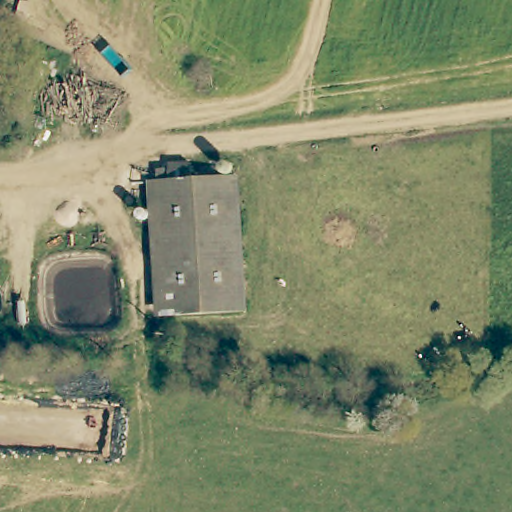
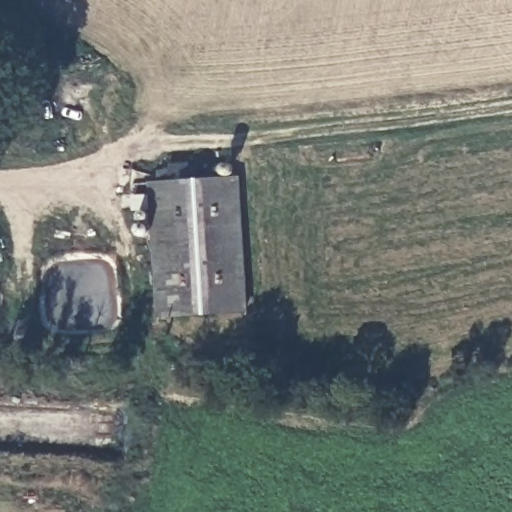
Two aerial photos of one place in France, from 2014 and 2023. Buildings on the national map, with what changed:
unchanged [(169,175),(169,185),(234,182),(241,318),(166,321),(156,176),(169,175)]

